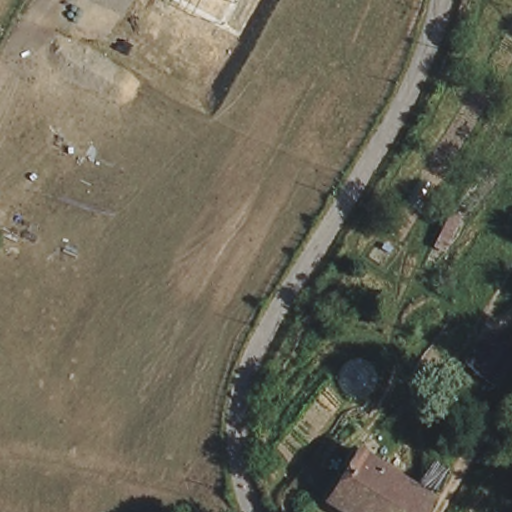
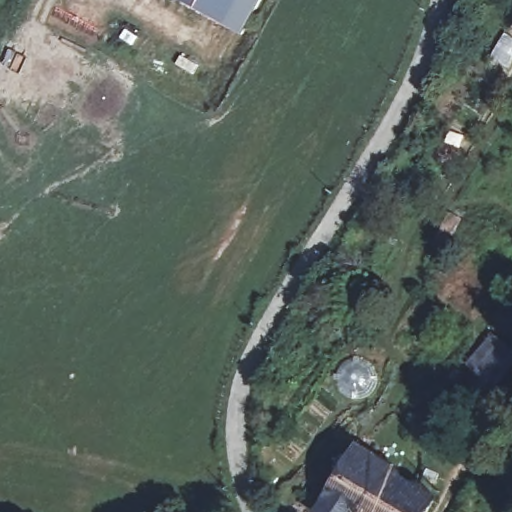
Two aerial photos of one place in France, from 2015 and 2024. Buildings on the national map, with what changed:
new [(242,34),(178,0),(261,0),(242,34)]
unchanged [(426,512),(347,512),(327,502),(361,448),(435,498),(426,512)]

